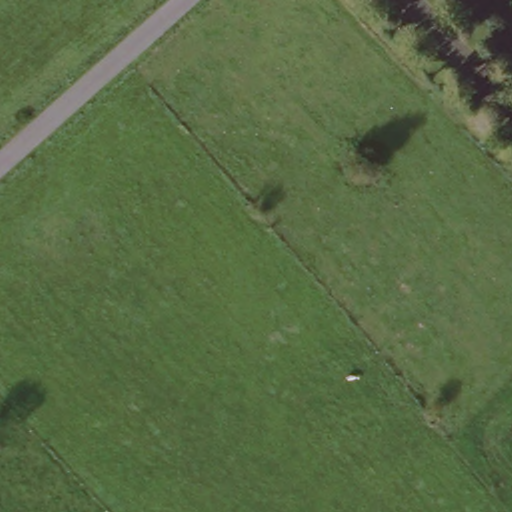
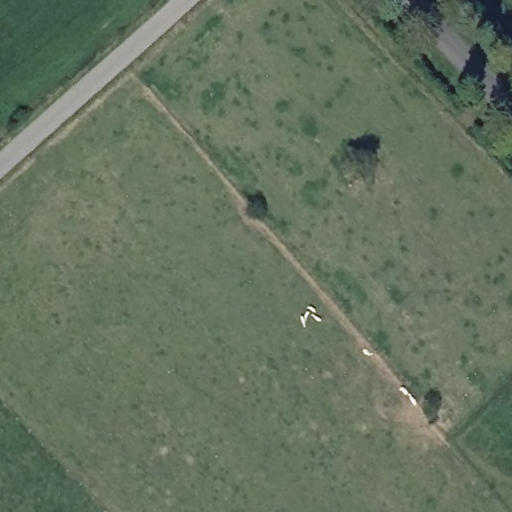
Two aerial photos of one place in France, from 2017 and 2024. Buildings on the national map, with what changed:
[]

